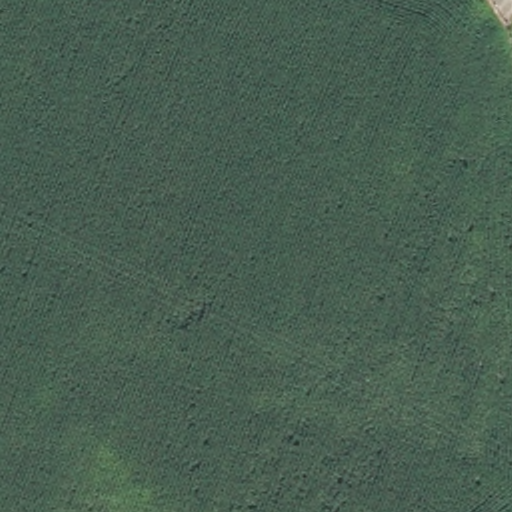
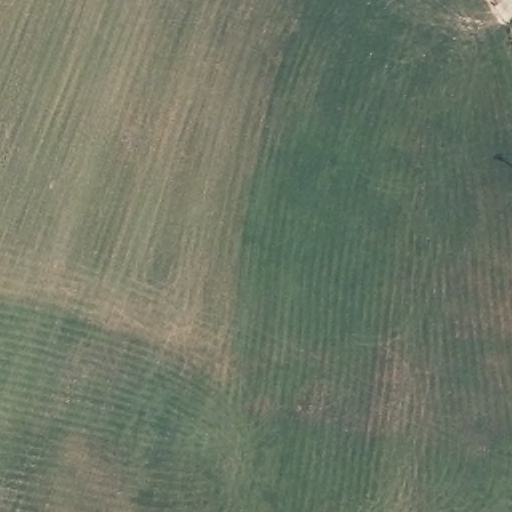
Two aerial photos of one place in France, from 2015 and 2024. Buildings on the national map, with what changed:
[]

